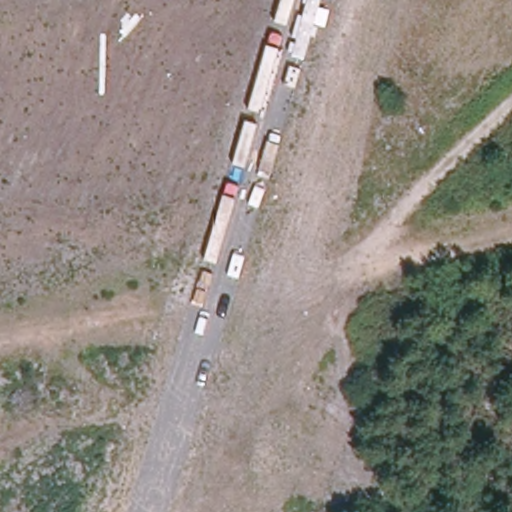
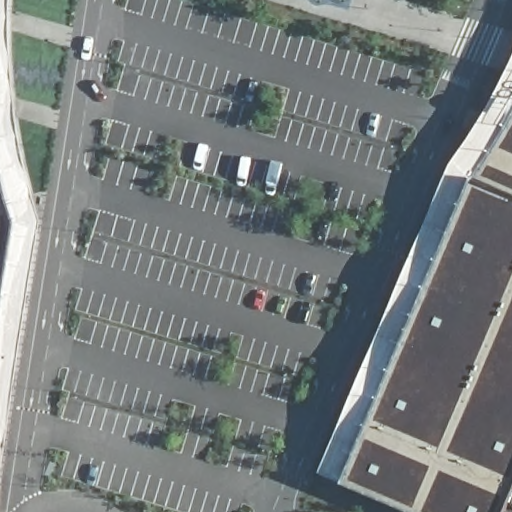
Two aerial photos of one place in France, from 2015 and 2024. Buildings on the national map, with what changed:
new [(489,155),(502,135),(512,118),(512,196),(472,179),(489,155)]
new [(3,176),(18,225),(0,336),(0,161),(3,176)]
new [(342,486),(472,179),(512,196),(512,493),(504,512),(405,512),(342,486)]

